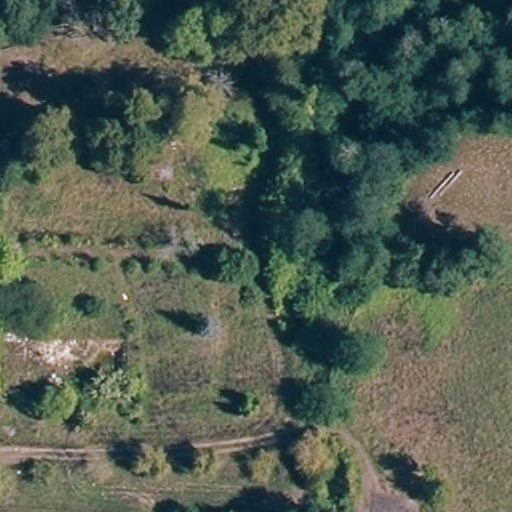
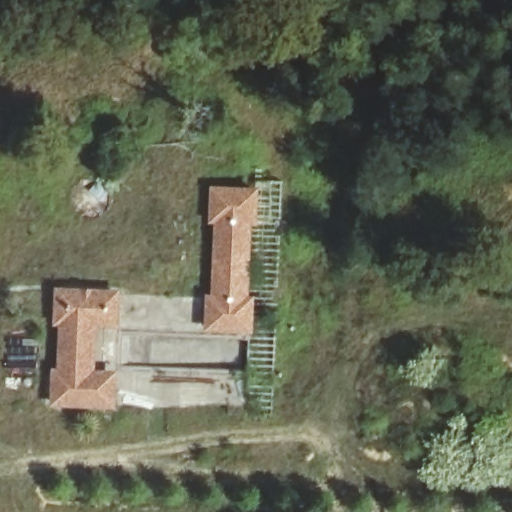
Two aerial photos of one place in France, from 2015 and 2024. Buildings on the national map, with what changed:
demolished [(208,193),(182,191),(184,165),(210,167),(208,193)]
new [(257,187),(257,227),(250,227),(249,297),(254,297),(252,334),(202,332),(205,293),(211,293),(213,223),(209,222),(210,187),(257,187)]
demolished [(250,198),(249,231),(216,230),(218,196),(250,198)]
new [(51,408),(52,371),(57,372),(58,318),(54,318),(55,290),(121,291),(119,330),(97,330),(97,372),(118,372),(116,410),(51,408)]
demolished [(32,332),(27,399),(0,397),(0,345),(1,332),(32,332)]

